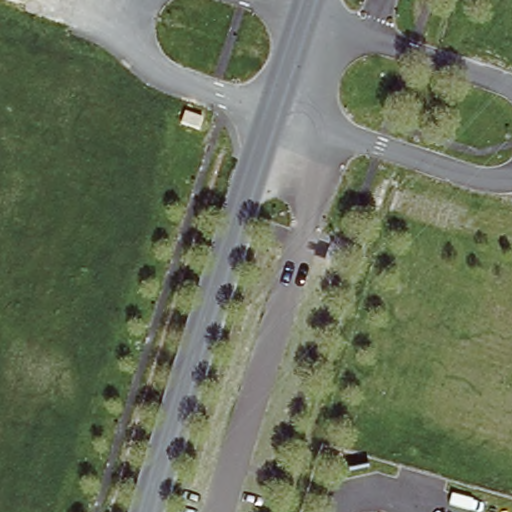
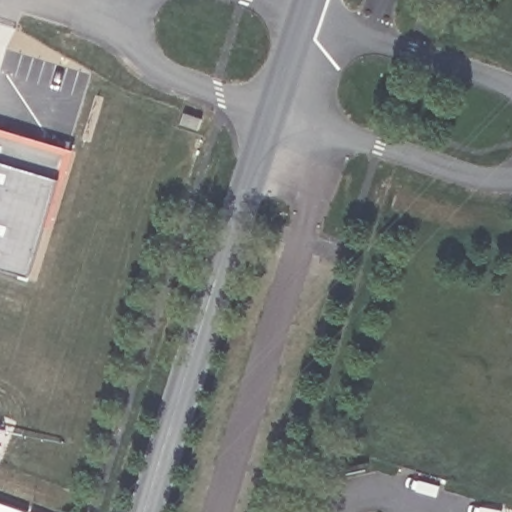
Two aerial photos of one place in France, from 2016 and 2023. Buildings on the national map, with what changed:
new [(32,272),(0,262),(0,125),(76,148),(63,176),(32,272)]

